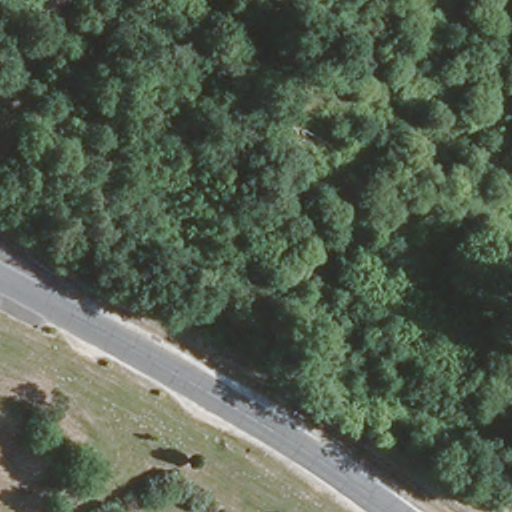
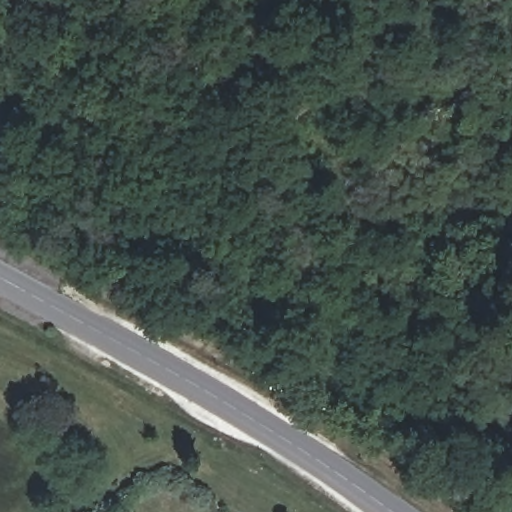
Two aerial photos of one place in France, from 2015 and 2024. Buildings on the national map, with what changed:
[]

